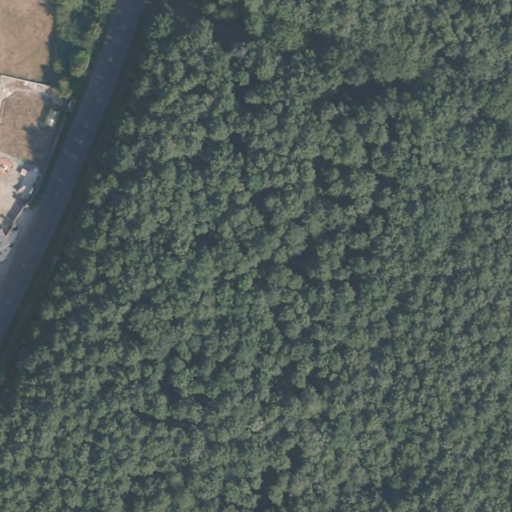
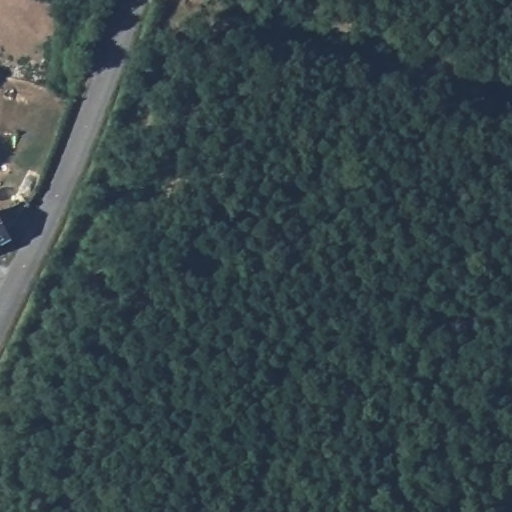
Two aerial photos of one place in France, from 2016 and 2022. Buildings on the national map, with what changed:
unchanged [(10,246),(0,252),(0,226),(10,246)]

